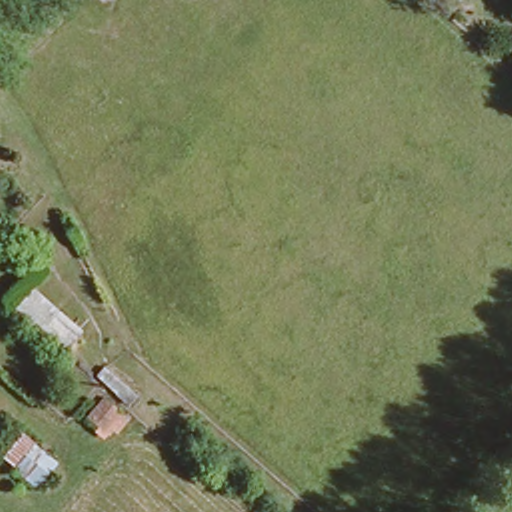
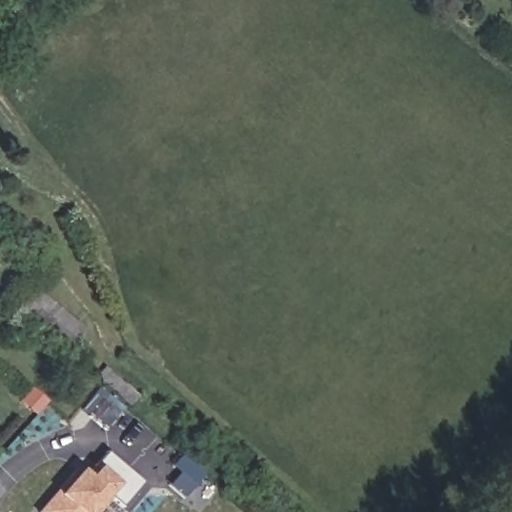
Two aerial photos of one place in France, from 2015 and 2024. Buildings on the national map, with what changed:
unchanged [(80,322),(60,345),(13,304),(34,281),(80,322)]
unchanged [(125,410),(114,401),(96,385),(92,382),(104,369),(105,371),(125,387),(136,397),(125,410)]
unchanged [(105,432),(87,417),(101,401),(119,417),(105,432)]
new [(80,473),(87,473),(105,452),(141,483),(120,507),(107,497),(94,512),(37,512),(52,493),(56,497),(80,473)]

